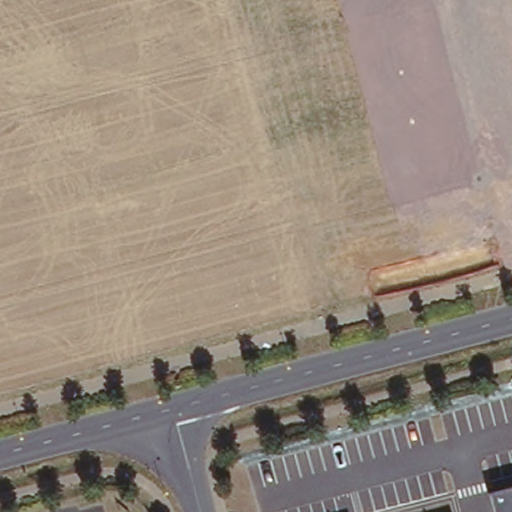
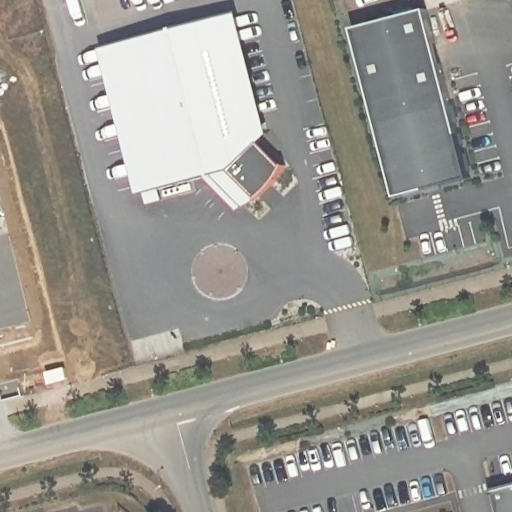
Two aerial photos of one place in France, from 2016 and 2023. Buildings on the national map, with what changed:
new [(431,3),(473,171),(403,190),(357,23),(431,3)]
new [(230,10),(261,135),(290,163),(273,183),(266,179),(255,190),(250,185),(239,196),(213,170),(148,187),(107,40),(230,10)]
unchanged [(512,486),(512,512),(496,512),(491,492),(512,486)]

